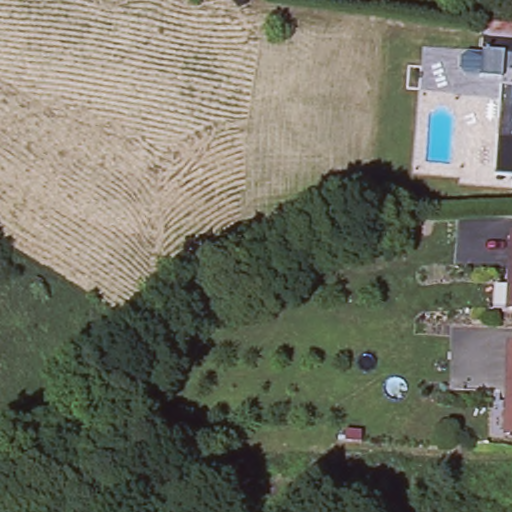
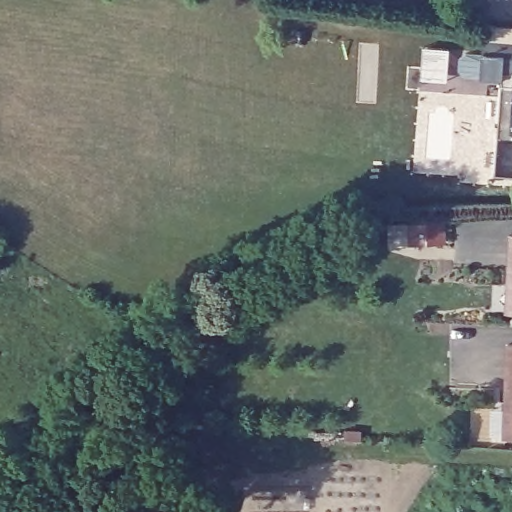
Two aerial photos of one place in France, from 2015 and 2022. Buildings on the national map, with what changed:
unchanged [(482,40),(482,36),(483,25),(512,27),(512,42),(482,40)]
unchanged [(482,40),(512,42),(512,94),(512,100),(499,99),(500,76),(482,75),(479,75),(475,74),(463,73),(458,68),(458,58),(465,54),(481,55),(482,44),(482,40)]
unchanged [(512,100),(512,94),(512,134),(508,134),(512,100)]
unchanged [(512,134),(512,175),(493,173),(499,99),(512,100),(508,134),(512,134)]
unchanged [(512,310),(508,310),(512,241),(512,310)]
unchanged [(506,406),(509,343),(512,343),(512,435),(505,435),(506,406)]

